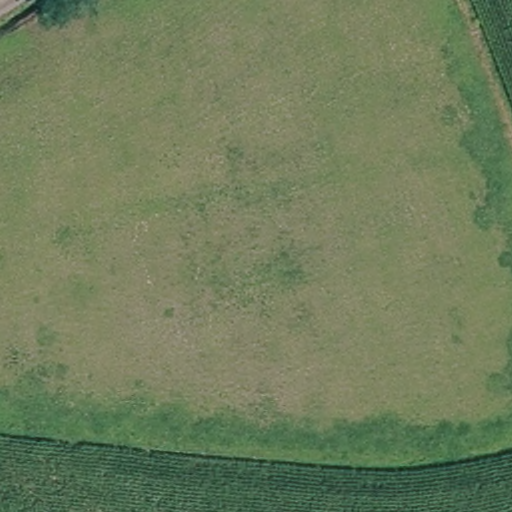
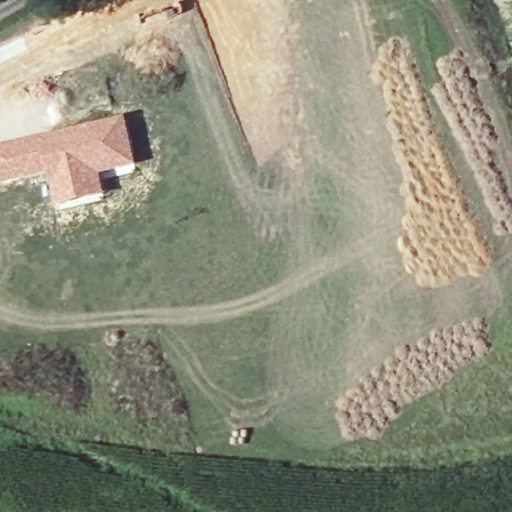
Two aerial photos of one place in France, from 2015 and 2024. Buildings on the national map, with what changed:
new [(136,168),(101,176),(104,198),(55,209),(47,176),(0,187),(0,146),(125,116),(136,168)]

